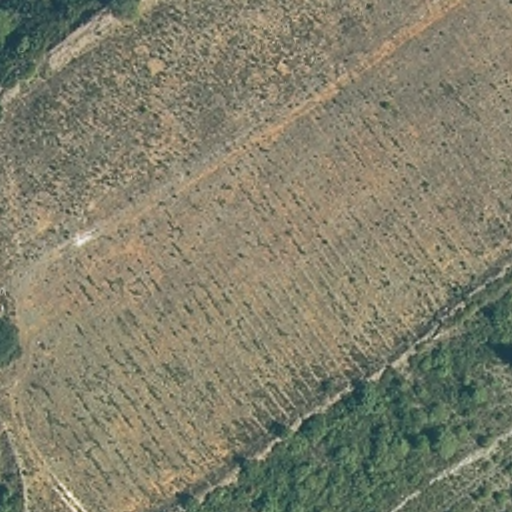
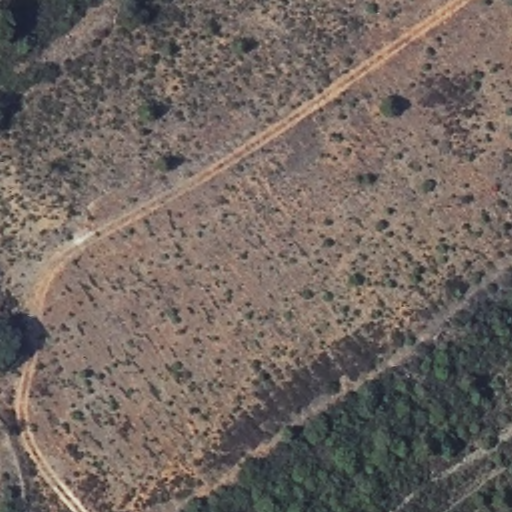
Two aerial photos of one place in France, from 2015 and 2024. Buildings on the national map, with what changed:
[]

